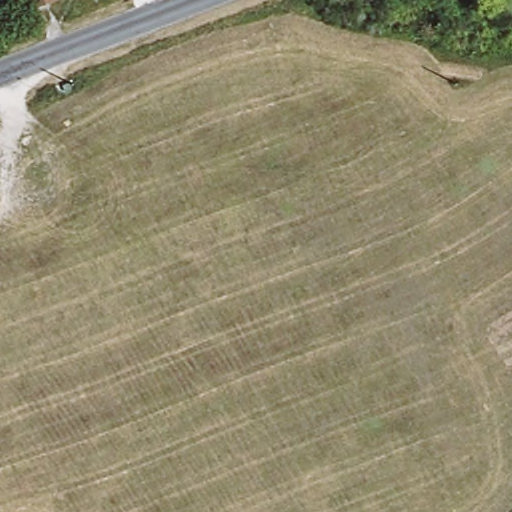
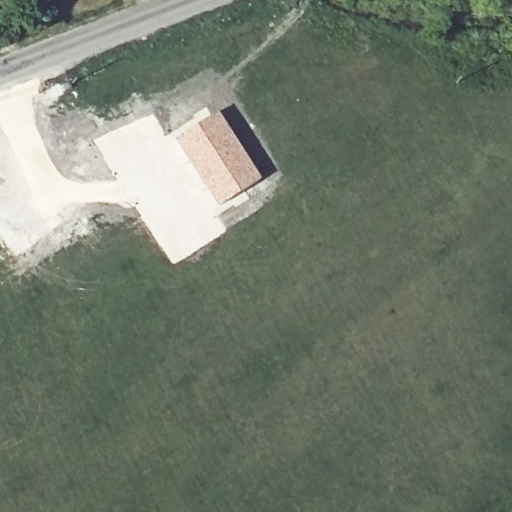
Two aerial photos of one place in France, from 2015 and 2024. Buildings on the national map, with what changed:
unchanged [(36,3),(35,0),(44,0),(36,3)]
new [(217,111),(261,179),(218,207),(174,140),(217,111)]

